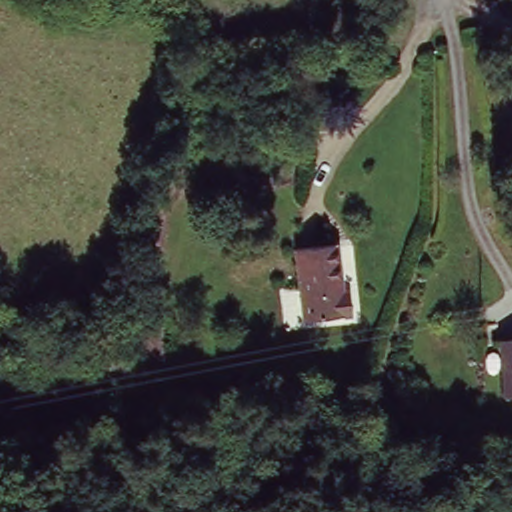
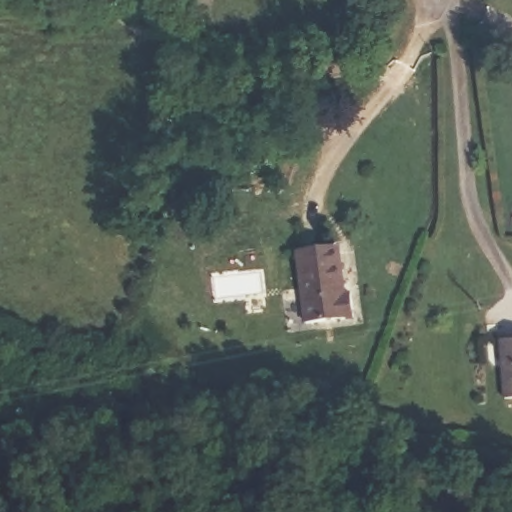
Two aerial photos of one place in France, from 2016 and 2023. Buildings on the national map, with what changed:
unchanged [(342,248),(347,290),(355,289),(360,318),(308,322),(300,252),(342,248)]
unchanged [(512,397),(509,397),(505,338),(512,337),(512,397)]

